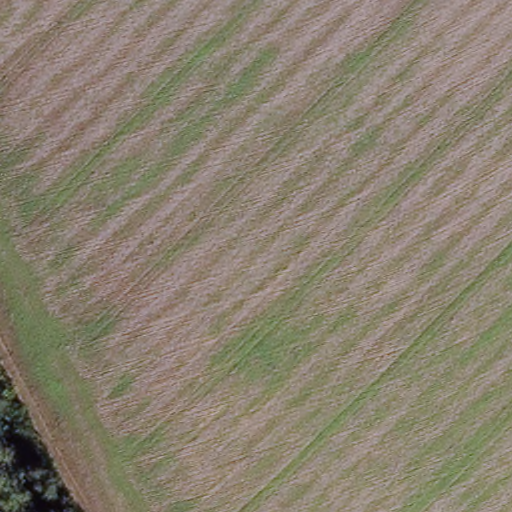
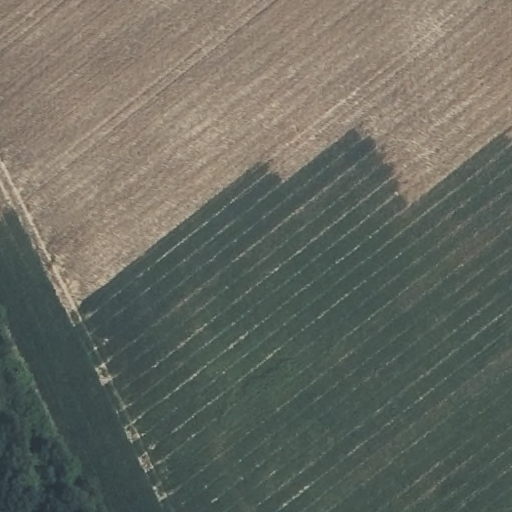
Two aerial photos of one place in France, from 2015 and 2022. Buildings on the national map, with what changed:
[]

